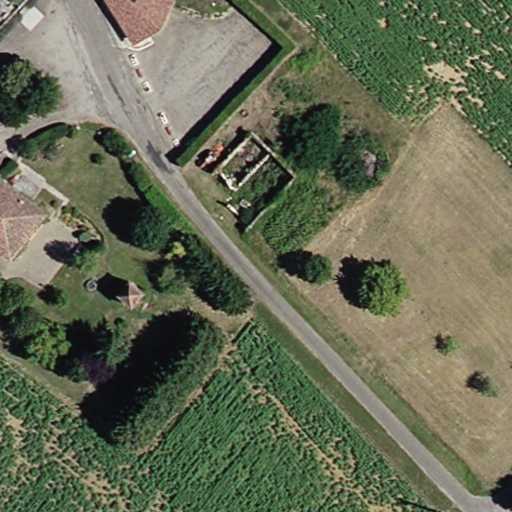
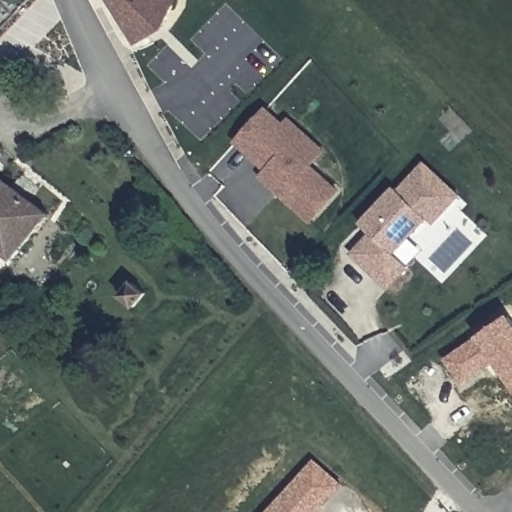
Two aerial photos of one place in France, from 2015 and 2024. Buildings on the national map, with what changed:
unchanged [(180,9),(180,20),(178,28),(155,46),(148,48),(142,46),(126,29),(114,0),(174,0),(177,2),(180,9)]
unchanged [(0,61),(7,67),(0,78),(0,61)]
new [(299,139),(290,149),(336,191),(308,220),(260,176),(273,163),(260,151),(255,158),(237,140),(267,109),(299,139)]
new [(290,120),(322,151),(309,166),(290,149),(299,139),(285,126),(290,120)]
new [(458,195),(435,222),(427,216),(393,253),(410,267),(388,287),(355,254),(375,229),(367,220),(395,190),(400,193),(426,165),(458,195)]
unchanged [(23,261),(0,244),(0,182),(0,171),(5,175),(57,216),(23,261)]
unchanged [(150,291),(135,310),(113,295),(130,276),(150,291)]
new [(496,362),(462,383),(445,357),(478,335),(511,313),(512,315),(512,386),(496,362)]
new [(321,512),(267,512),(315,457),(345,485),(321,512)]

